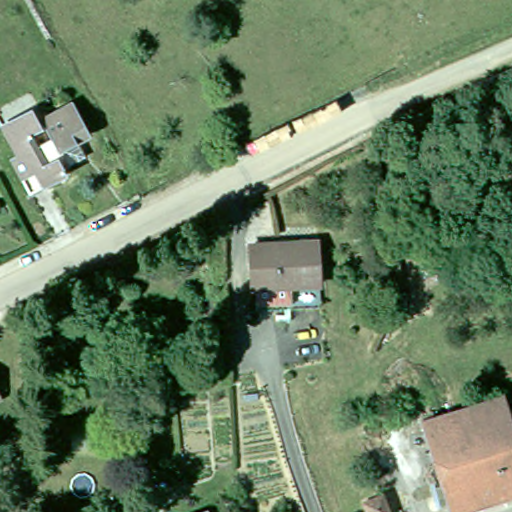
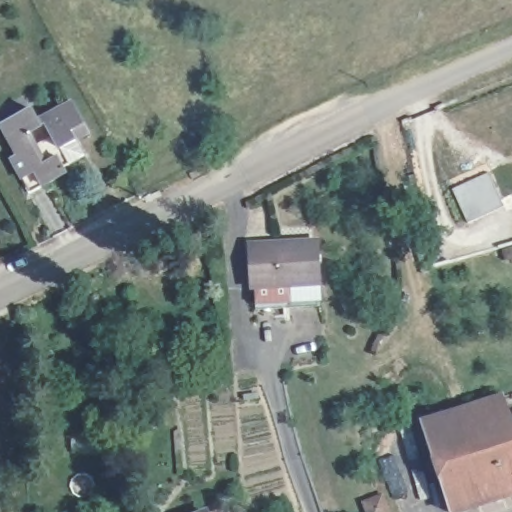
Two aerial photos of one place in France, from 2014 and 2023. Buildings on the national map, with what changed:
unchanged [(72,159),(68,161),(70,166),(31,184),(15,153),(19,151),(4,118),(34,102),(42,120),(32,125),(39,139),(55,132),(46,111),(75,96),(89,128),(77,134),(85,151),(72,159)]
new [(505,206),(465,222),(452,192),(491,174),(505,206)]
demolished [(459,229),(449,204),(465,197),(475,223),(459,229)]
unchanged [(320,239),(322,281),(256,284),(254,241),(320,239)]
unchanged [(455,498),(442,502),(437,483),(449,480),(428,415),(510,391),(512,398),(512,490),(457,507),(455,498)]
unchanged [(378,495),(384,512),(362,512),(359,502),(378,495)]

